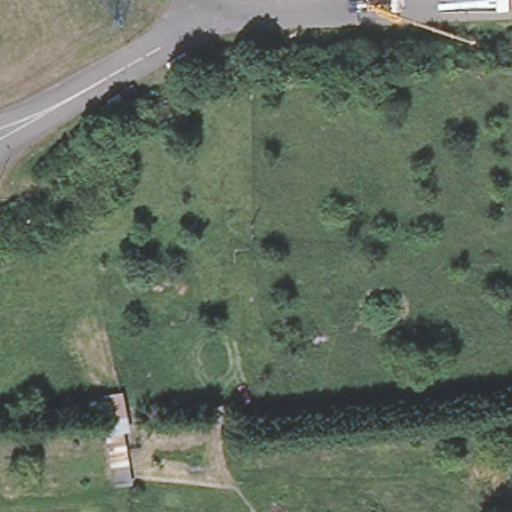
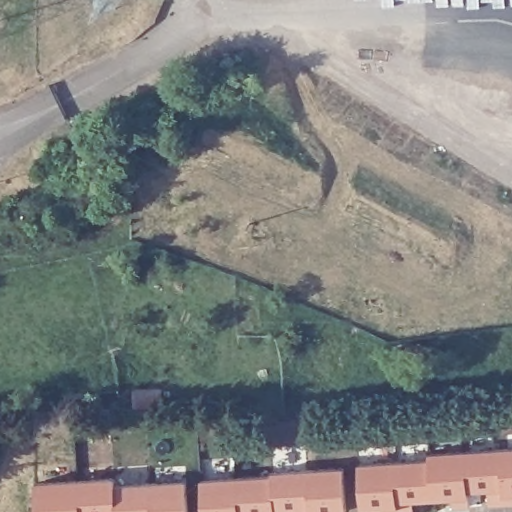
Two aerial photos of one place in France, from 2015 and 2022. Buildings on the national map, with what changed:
new [(500,449),(503,505),(488,506),(487,490),(467,491),(464,452),(500,449)]
new [(512,503),(503,505),(500,449),(512,449),(512,503)]
new [(464,452),(467,491),(468,507),(452,509),(451,496),(432,497),(431,498),(429,460),(428,454),(464,452)]
new [(429,460),(431,498),(432,497),(432,500),(411,501),(412,512),(397,512),(393,462),(428,460),(429,460)]
new [(397,512),(381,512),(380,507),(360,508),(357,465),(393,462),(397,512)]
new [(346,512),(310,512),(307,471),(343,468),(346,512)]
new [(307,471),(310,512),(294,512),(294,511),(281,512),(274,512),(271,477),(271,473),(307,471)]
new [(271,477),(274,512),(238,512),(236,479),(271,477)]
new [(238,512),(202,512),(200,481),(236,479),(238,512)]
new [(114,486),(116,512),(80,512),(78,482),(114,480),(114,486)]
new [(80,512),(35,512),(35,485),(78,482),(80,512)]
new [(188,512),(151,512),(150,484),(185,482),(188,512)]
new [(151,512),(116,512),(114,486),(150,484),(151,512)]

